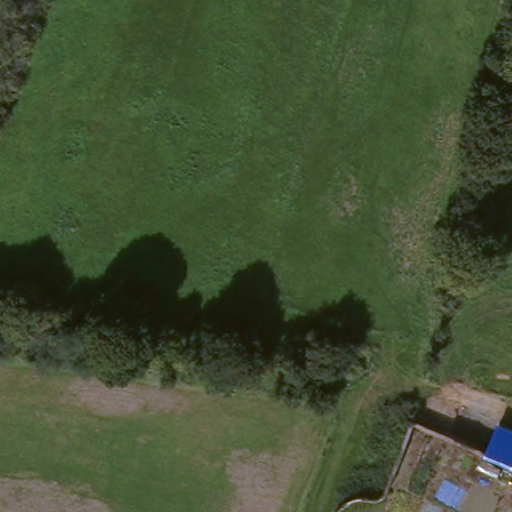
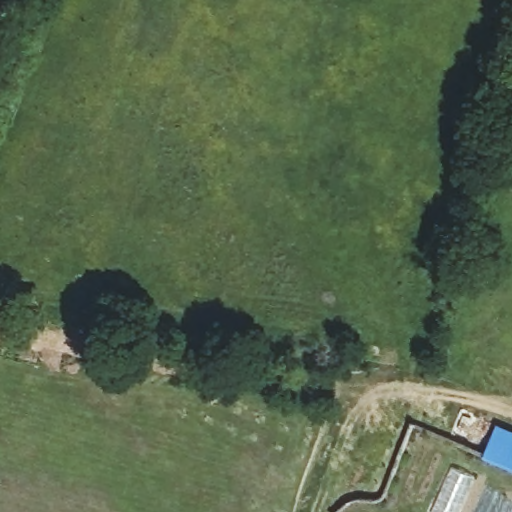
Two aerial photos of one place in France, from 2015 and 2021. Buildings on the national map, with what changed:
unchanged [(447,422),(512,446),(512,471),(508,469),(481,458),(438,440),(447,422)]

